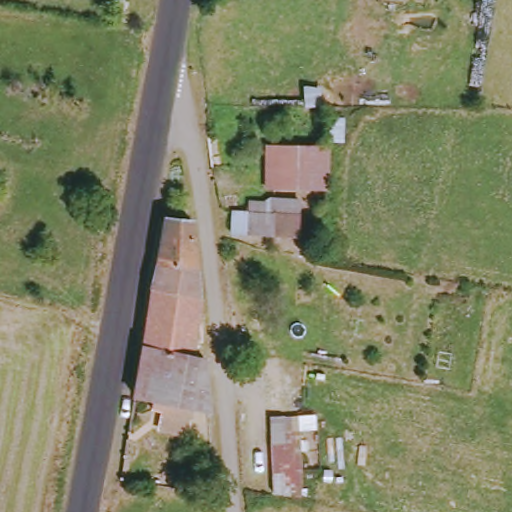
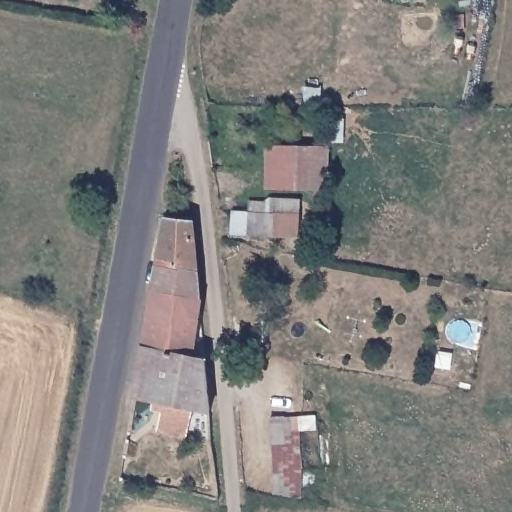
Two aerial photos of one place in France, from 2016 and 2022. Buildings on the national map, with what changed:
unchanged [(319,187),(260,190),(258,148),(316,145),(319,187)]
unchanged [(294,234),(227,234),(226,219),(226,218),(226,215),(244,215),(243,212),(243,205),(259,204),(259,217),(269,217),(268,200),(294,200),(294,234)]
unchanged [(148,282),(159,217),(188,222),(196,294),(148,282)]
unchanged [(148,282),(196,294),(188,354),(135,343),(148,282)]
unchanged [(129,399),(124,398),(135,343),(188,354),(201,358),(204,410),(129,399)]

